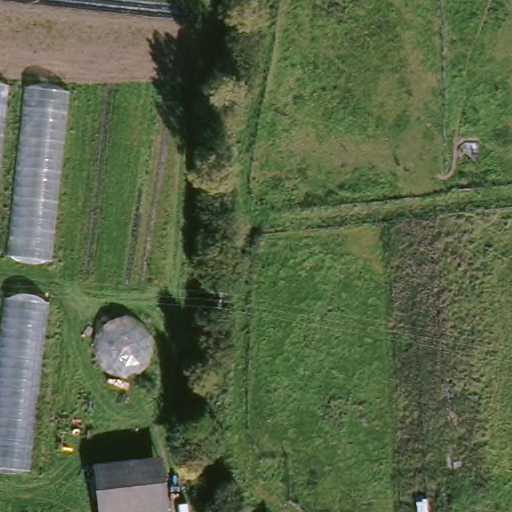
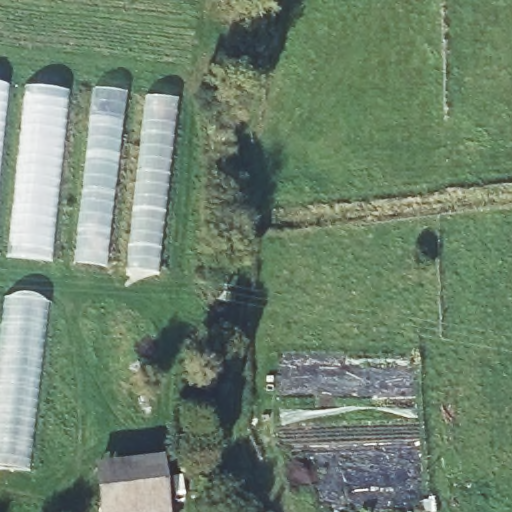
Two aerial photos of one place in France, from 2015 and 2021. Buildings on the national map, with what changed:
unchanged [(0,153),(0,84),(8,85),(0,153)]
unchanged [(28,86),(69,91),(51,260),(10,256),(28,86)]
new [(93,90),(121,93),(104,265),(74,261),(93,90)]
new [(147,96),(171,99),(153,273),(128,269),(147,96)]
unchanged [(48,302),(29,471),(0,467),(0,356),(6,297),(48,302)]
unchanged [(99,468),(163,460),(170,512),(103,512),(99,468)]

